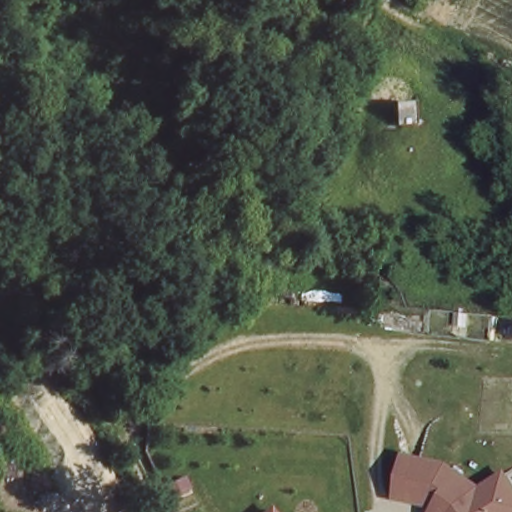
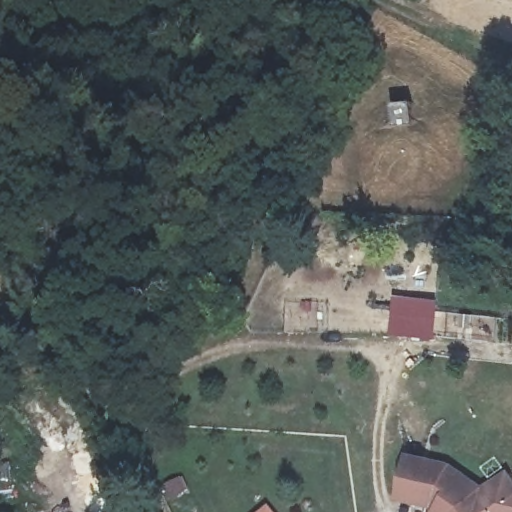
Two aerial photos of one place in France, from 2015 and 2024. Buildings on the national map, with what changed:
unchanged [(393,103),(416,100),(418,129),(395,128),(393,103)]
new [(393,295),(438,300),(433,340),(387,335),(393,295)]
unchanged [(451,463),(482,486),(510,470),(512,473),(512,512),(429,512),(429,509),(396,502),(408,454),(451,463)]

